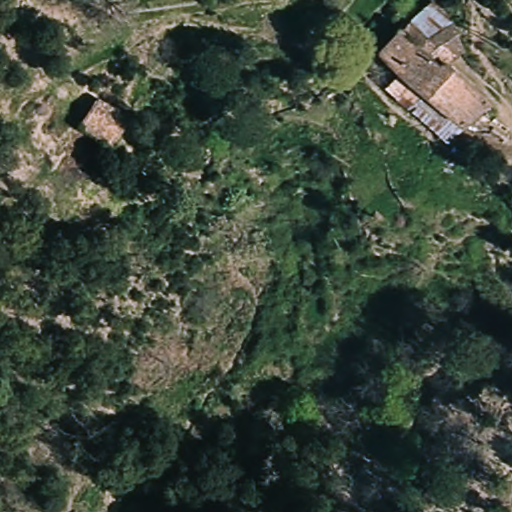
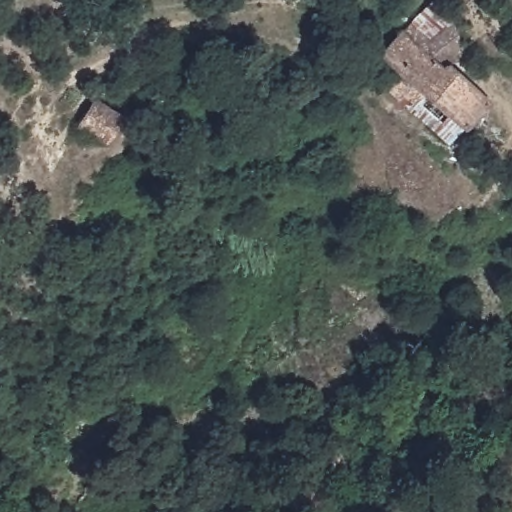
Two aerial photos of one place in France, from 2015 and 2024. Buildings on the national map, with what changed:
unchanged [(466,53),(453,66),(444,59),(440,61),(430,51),(436,40),(413,23),(430,0),(433,0),(456,24),(466,53)]
unchanged [(444,59),(453,66),(494,98),(473,126),(417,85),(403,103),(388,91),(402,73),(387,62),(413,23),(436,40),(430,51),(440,61),(444,59)]
unchanged [(84,129),(98,104),(126,120),(112,146),(84,129)]

